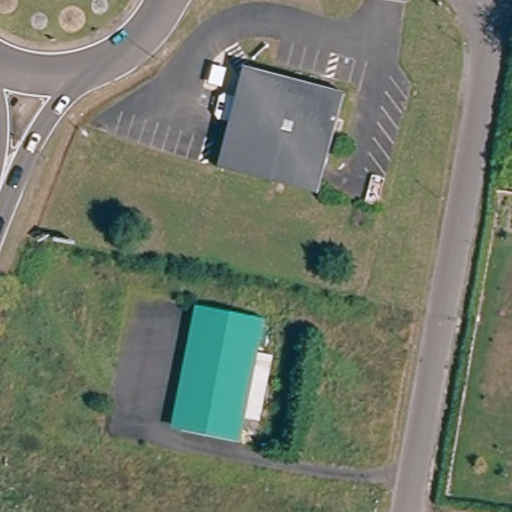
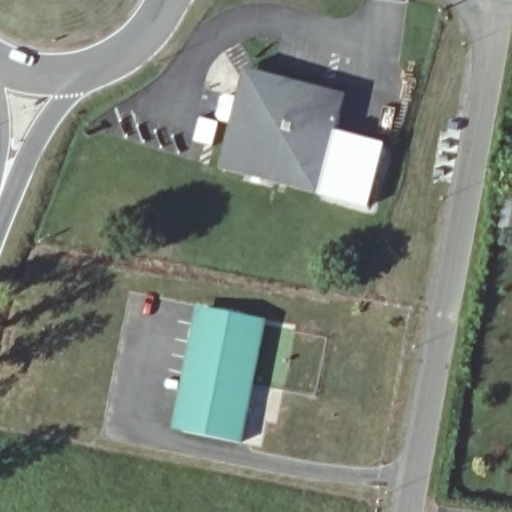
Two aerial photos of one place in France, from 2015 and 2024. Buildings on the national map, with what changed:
unchanged [(315,192),(215,164),(229,115),(239,79),(257,69),(342,92),(315,192)]
new [(315,192),(332,129),(385,143),(369,208),(315,192)]
unchanged [(209,307),(268,318),(245,442),(186,431),(209,307)]

